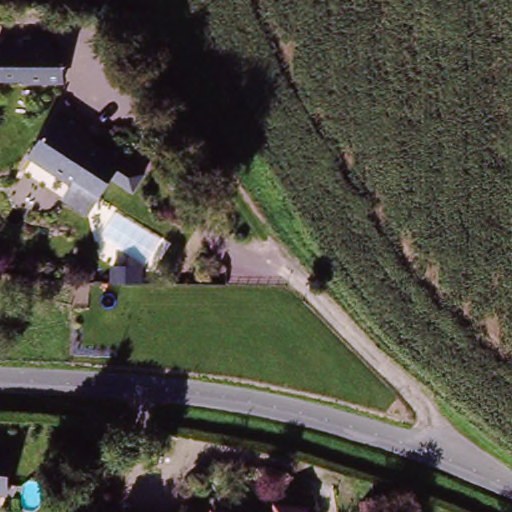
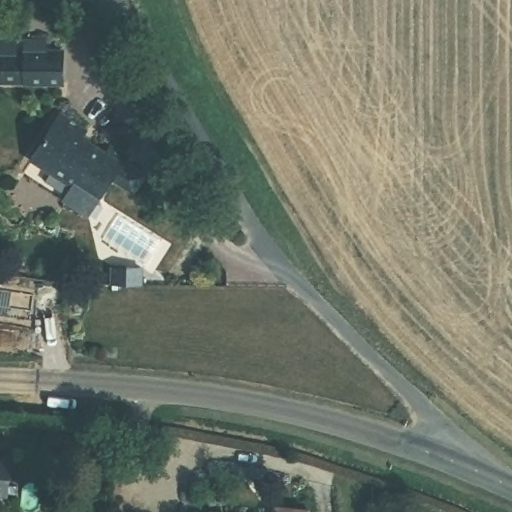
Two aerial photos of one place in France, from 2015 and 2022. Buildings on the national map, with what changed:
unchanged [(46,43),(44,55),(60,56),(55,87),(21,85),(19,80),(0,78),(0,38),(16,40),(15,52),(24,52),(25,41),(46,43)]
unchanged [(60,196),(71,182),(31,153),(63,110),(88,127),(83,140),(106,155),(112,147),(125,156),(123,160),(143,176),(131,192),(110,177),(84,213),(60,196)]
unchanged [(0,492),(0,451),(14,453),(8,493),(0,492)]
unchanged [(219,510),(228,512),(219,512),(219,510)]
unchanged [(357,512),(348,512),(348,510),(357,512)]

